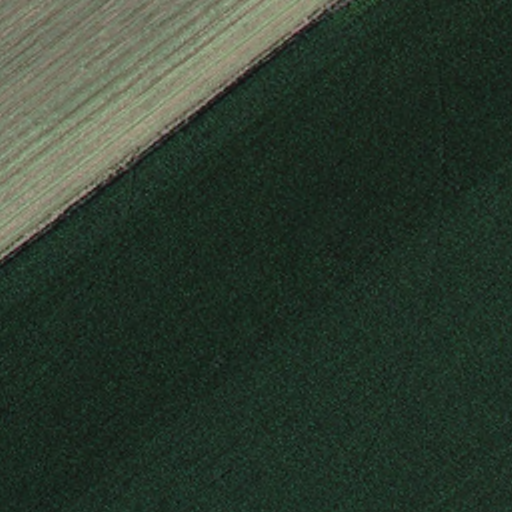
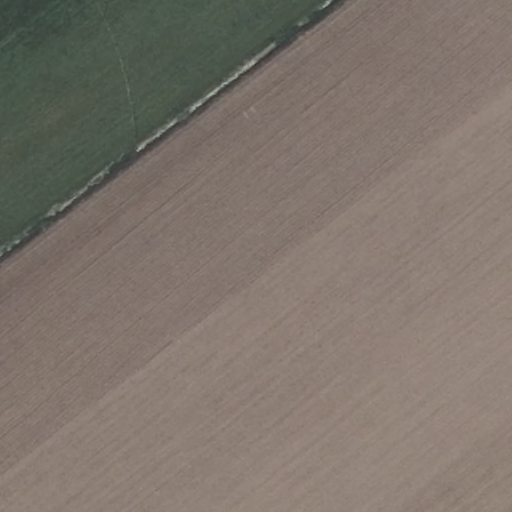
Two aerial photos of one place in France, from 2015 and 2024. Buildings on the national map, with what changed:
[]

